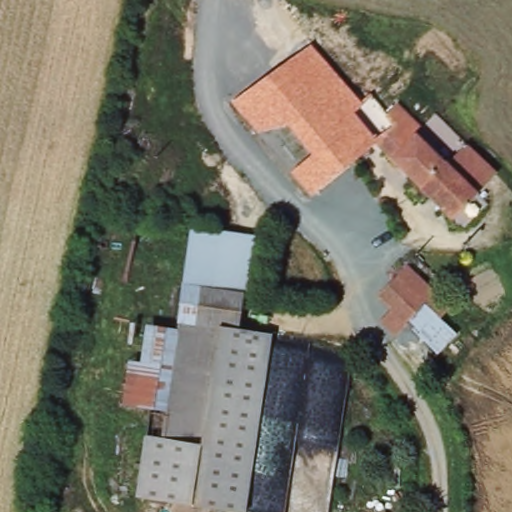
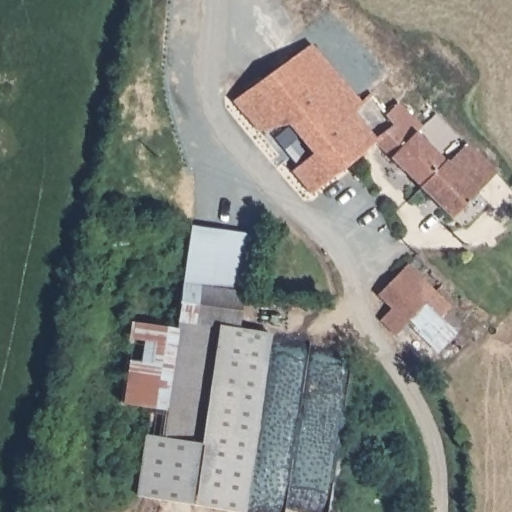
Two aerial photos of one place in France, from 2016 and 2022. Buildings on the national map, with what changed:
unchanged [(303,35),(333,67),(350,85),(356,93),(365,85),(376,98),(383,105),(397,94),(402,99),(412,109),(383,133),(377,137),(372,142),(331,176),(322,184),(315,189),(277,146),(233,97),(251,81),(303,35)]
unchanged [(383,133),(412,109),(423,120),(415,126),(445,159),(446,161),(420,185),(377,137),(383,133)]
unchanged [(467,139),(503,170),(483,193),(490,200),(478,210),(466,197),(473,191),(446,161),(445,159),(467,139)]
unchanged [(473,191),(466,197),(446,215),(420,185),(446,161),(473,191)]
unchanged [(252,235),(237,328),(269,335),(244,511),(135,495),(143,435),(165,440),(171,412),(120,408),(129,324),(175,329),(189,227),(252,235)]
unchanged [(435,351),(421,333),(408,318),(403,322),(392,331),(378,316),(390,307),(375,291),(385,283),(408,262),(437,290),(443,296),(452,305),(437,319),(452,337),(435,351)]

